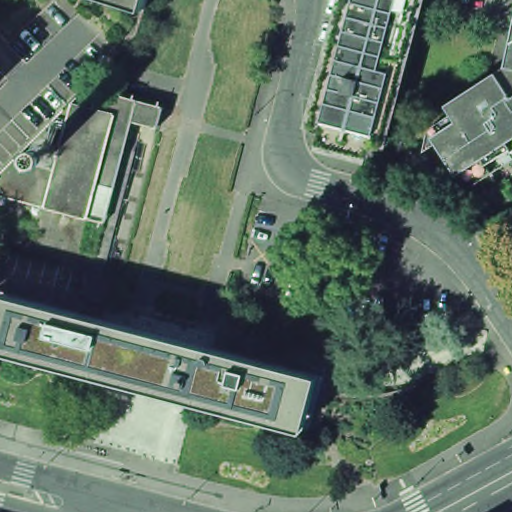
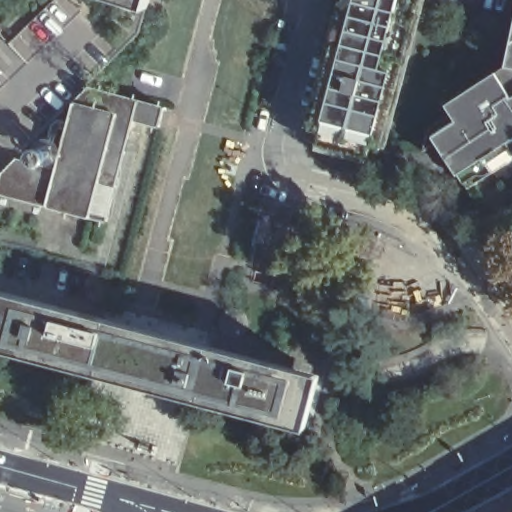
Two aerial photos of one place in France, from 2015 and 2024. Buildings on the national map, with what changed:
unchanged [(153,0),(153,2),(145,0),(153,0)]
unchanged [(333,134),(369,0),(420,0),(381,146),(333,134)]
unchanged [(507,23),(512,1),(512,85),(498,64),(502,43),(507,23)]
unchanged [(441,162),(433,150),(428,142),(415,151),(420,128),(443,112),(437,104),(475,79),(498,64),(512,85),(512,151),(457,187),(452,179),(441,162)]
unchanged [(0,191),(0,169),(11,158),(11,159),(51,169),(69,104),(85,87),(126,98),(160,107),(155,126),(128,119),(102,218),(0,191)]
unchanged [(491,222),(512,210),(512,243),(507,246),(491,222)]
unchanged [(0,273),(0,241),(9,243),(0,273)]
unchanged [(323,373),(311,419),(130,373),(0,340),(0,291),(141,327),(323,373)]

